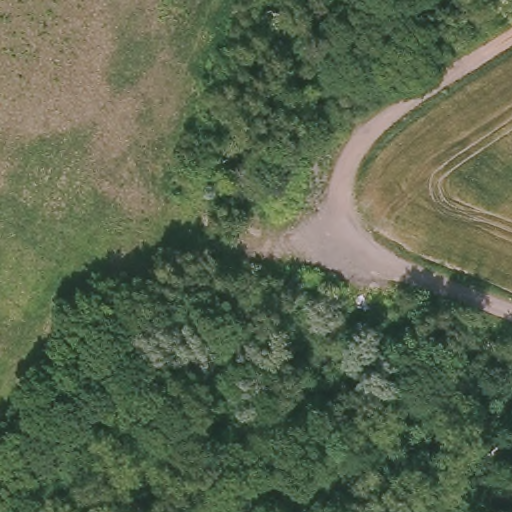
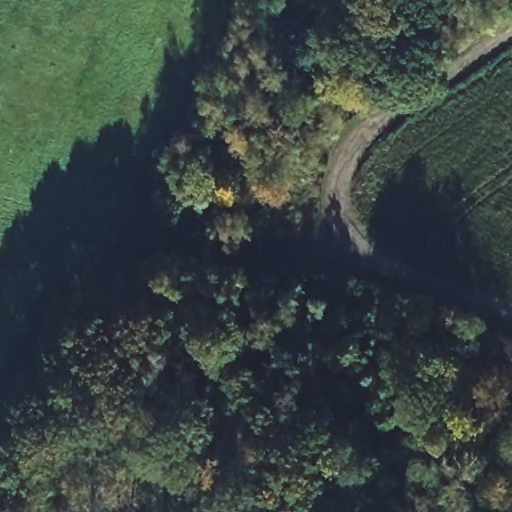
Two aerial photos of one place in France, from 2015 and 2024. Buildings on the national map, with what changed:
unchanged [(334,107),(305,113),(302,98),(332,93),(334,107)]

